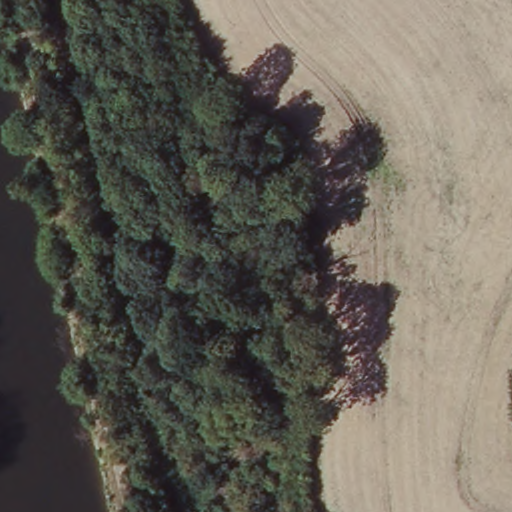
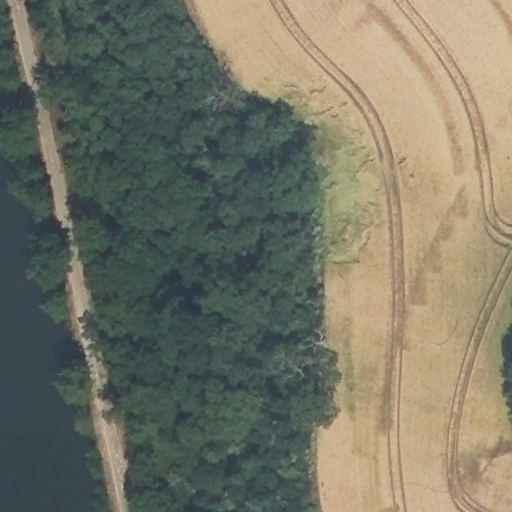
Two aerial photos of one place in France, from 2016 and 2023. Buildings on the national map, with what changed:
[]

